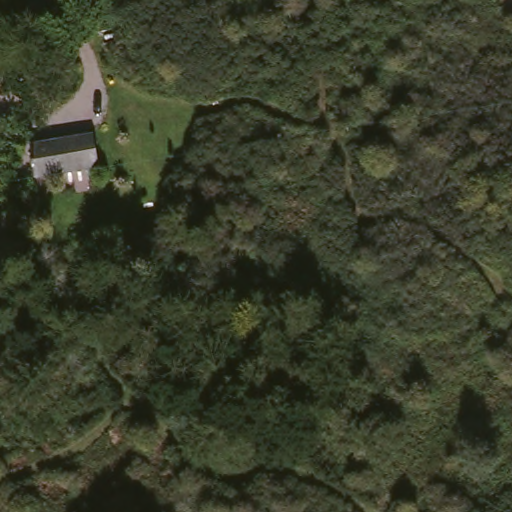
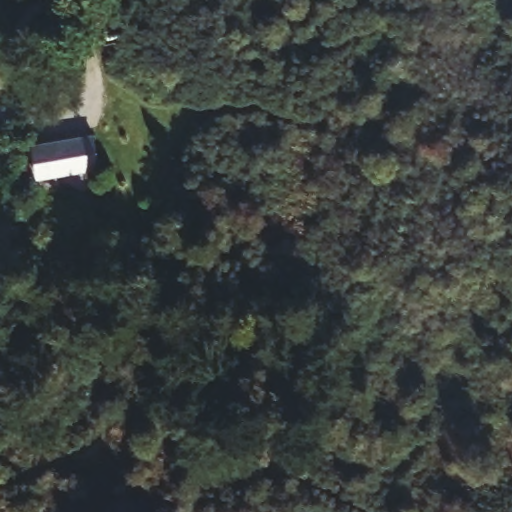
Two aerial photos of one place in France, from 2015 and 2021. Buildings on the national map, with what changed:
unchanged [(91,135),(99,167),(43,180),(36,149),(91,135)]

